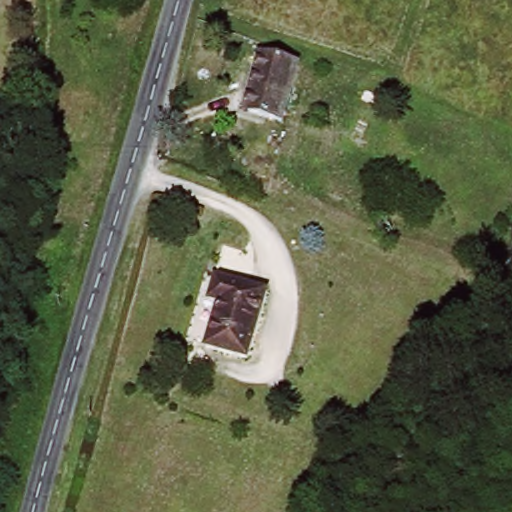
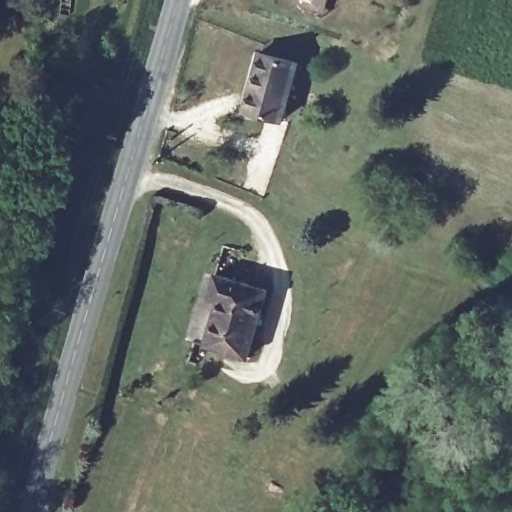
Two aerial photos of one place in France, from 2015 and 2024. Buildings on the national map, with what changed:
unchanged [(261,55),(297,67),(278,125),(242,114),(261,55)]
unchanged [(208,348),(220,302),(211,300),(217,279),(268,291),(251,359),(208,348)]

